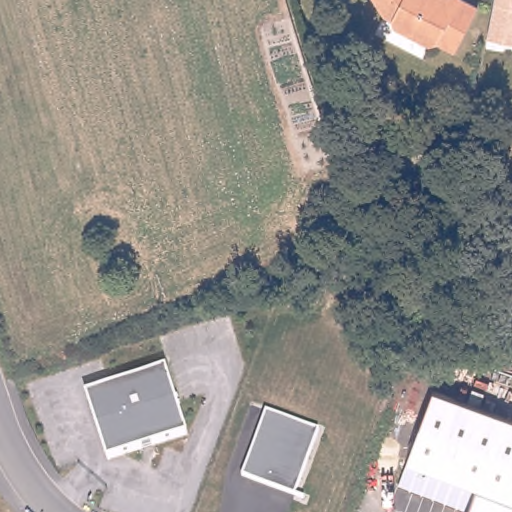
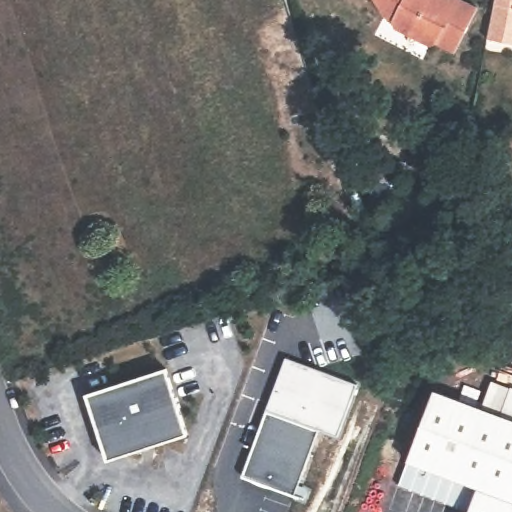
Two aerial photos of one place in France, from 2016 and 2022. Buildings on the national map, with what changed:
unchanged [(428,0),(428,1),(435,4),(437,0),(464,0),(480,8),(458,54),(444,47),(437,36),(421,29),(416,34),(408,38),(398,34),(393,22),(386,21),(373,0),(428,0)]
unchanged [(499,0),(512,0),(512,45),(491,42),(499,0)]
new [(265,409),(285,357),(357,383),(337,436),(318,429),(265,409)]
unchanged [(163,367),(184,432),(104,458),(83,392),(163,367)]
unchanged [(432,389),(479,407),(512,419),(512,512),(466,512),(467,510),(397,483),(432,389)]
unchanged [(265,409),(318,429),(293,495),(241,475),(265,409)]

